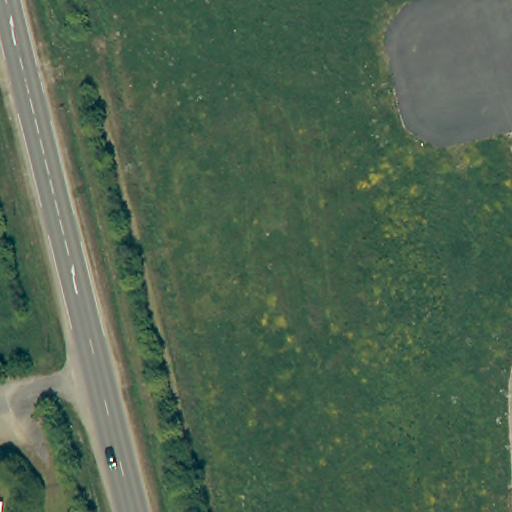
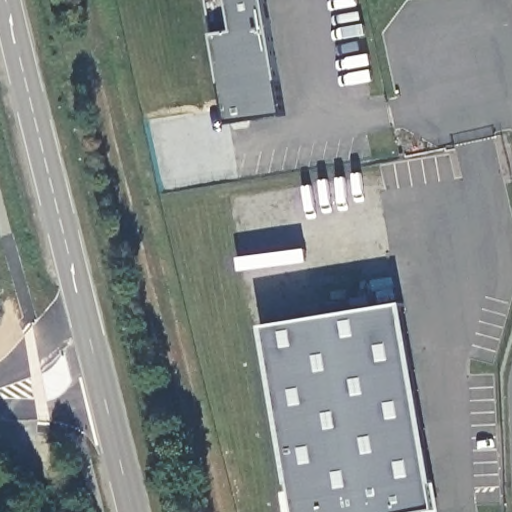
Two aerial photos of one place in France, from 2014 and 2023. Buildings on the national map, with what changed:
unchanged [(229,125),(213,35),(216,35),(208,0),(265,0),(285,116),(229,125)]
new [(433,508),(411,512),(296,512),(262,328),(404,304),(433,508)]

